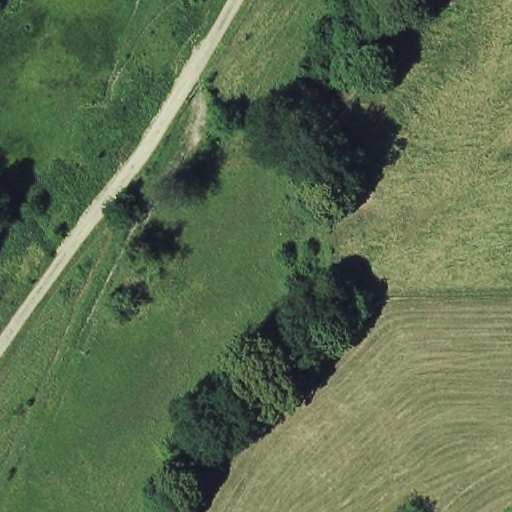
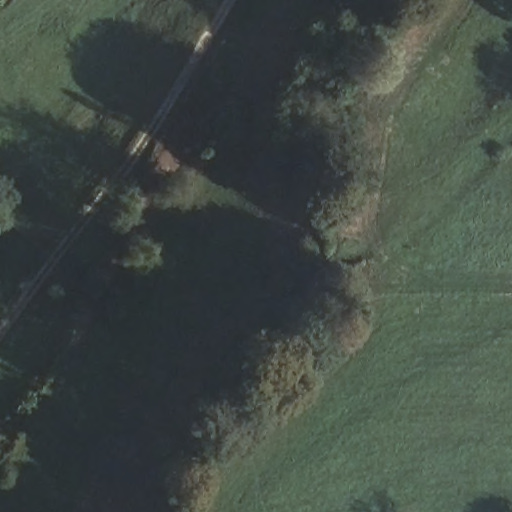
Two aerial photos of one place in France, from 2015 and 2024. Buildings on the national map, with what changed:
[]

